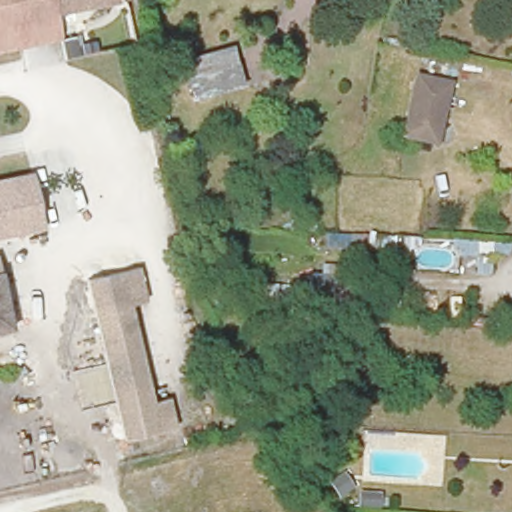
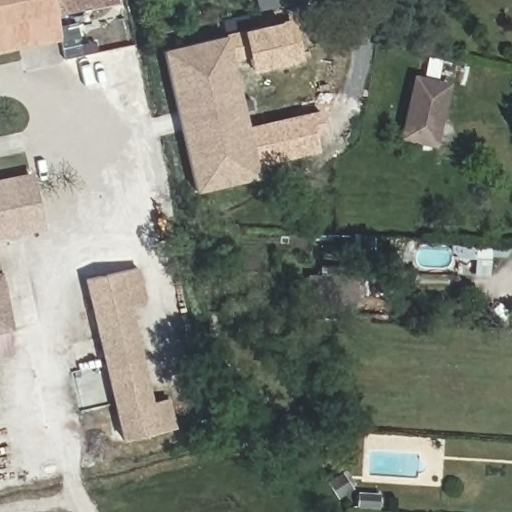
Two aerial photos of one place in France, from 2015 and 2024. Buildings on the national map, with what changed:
unchanged [(16,47),(0,50),(0,0),(112,0),(113,4),(50,16),(54,40),(16,47)]
new [(315,134),(318,150),(256,165),(258,178),(195,193),(163,49),(224,35),(243,31),(284,22),(295,18),(304,60),(292,62),(249,72),(246,56),(233,60),(248,126),(320,110),(326,133),(315,134)]
demolished [(194,94),(183,56),(230,43),(242,81),(194,94)]
unchanged [(452,76),(440,136),(405,129),(418,70),(452,76)]
unchanged [(28,171),(40,224),(0,232),(0,177),(28,171)]
unchanged [(116,417),(79,278),(115,270),(149,408),(116,417)]
unchanged [(337,310),(306,309),(305,271),(337,272),(337,310)]
unchanged [(5,324),(0,325),(0,288),(5,324)]
unchanged [(116,417),(149,408),(169,403),(174,427),(120,439),(116,417)]
unchanged [(404,512),(361,512),(361,511),(404,512)]

